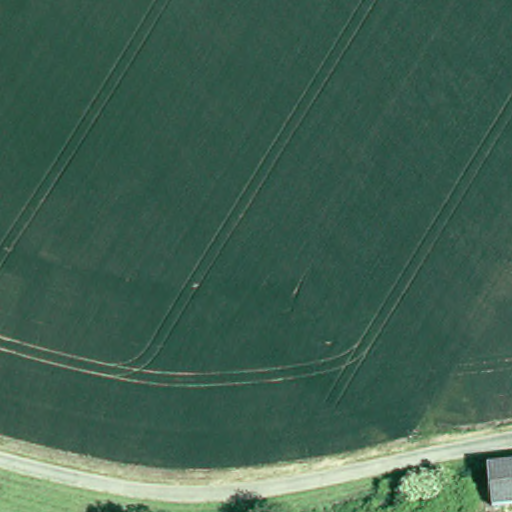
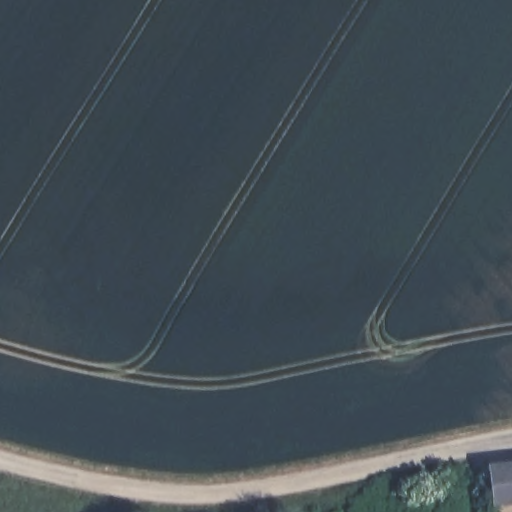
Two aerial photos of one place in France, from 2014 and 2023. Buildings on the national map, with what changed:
unchanged [(480,464),(512,459),(512,504),(486,508),(480,464)]

